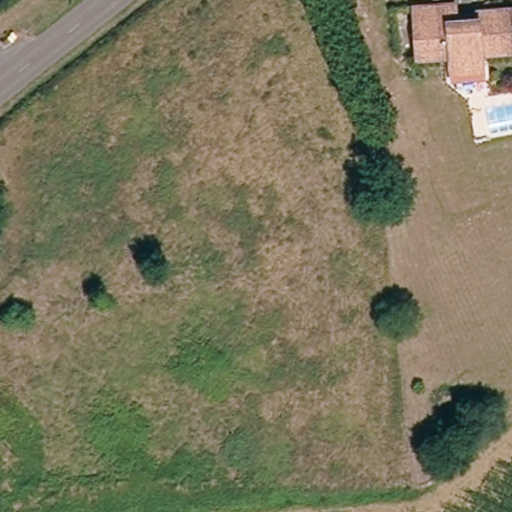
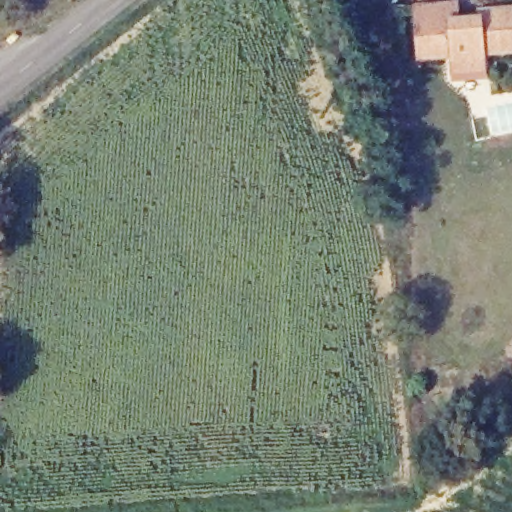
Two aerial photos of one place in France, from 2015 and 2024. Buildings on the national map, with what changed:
unchanged [(485,49),(487,71),(455,73),(454,51),(423,52),(420,1),(440,0),(460,0),(461,16),(485,15),(484,6),(512,4),(512,46),(485,49)]

